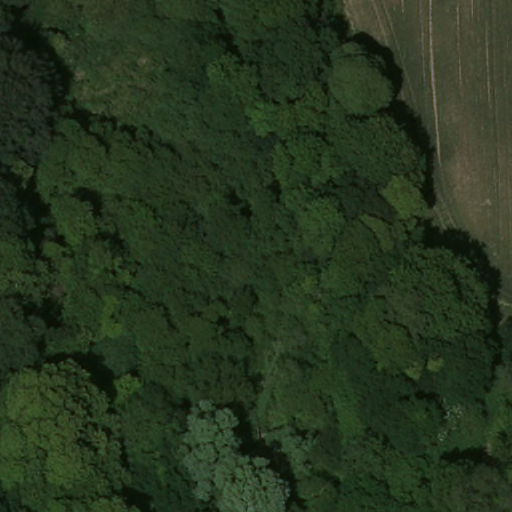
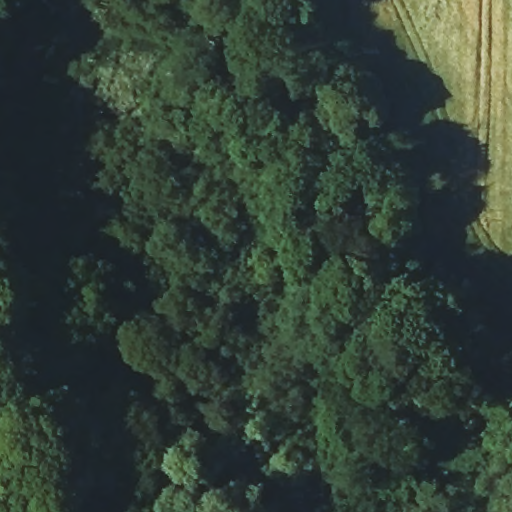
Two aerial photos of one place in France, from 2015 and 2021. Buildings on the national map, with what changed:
[]

